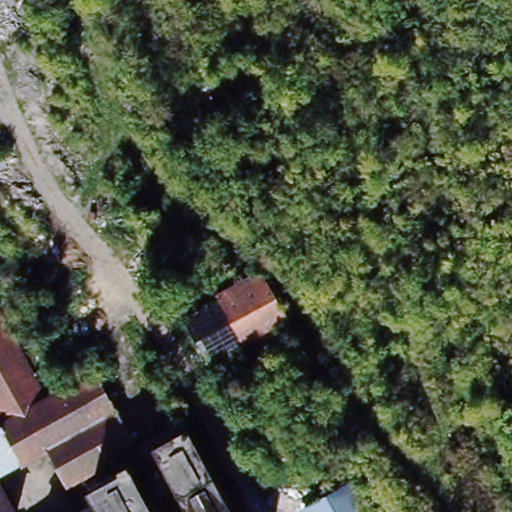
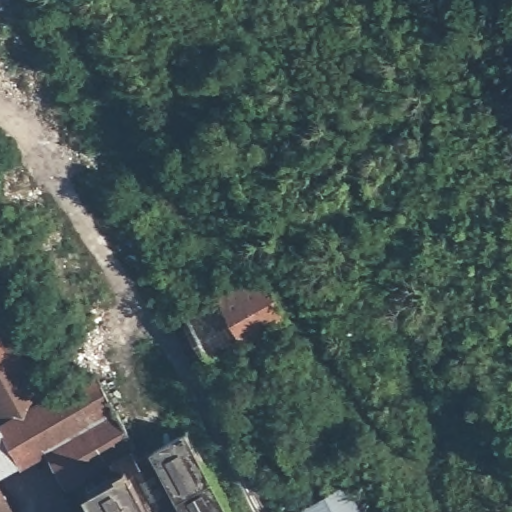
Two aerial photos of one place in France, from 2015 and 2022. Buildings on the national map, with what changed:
unchanged [(181,316),(255,277),(279,323),(206,363),(181,316)]
unchanged [(40,343),(66,390),(91,377),(137,458),(181,435),(127,470),(83,492),(94,512),(76,512),(83,508),(69,485),(63,488),(43,452),(19,465),(0,430),(0,321),(19,354),(40,343)]
unchanged [(19,465),(0,476),(0,430),(19,465)]
unchanged [(224,512),(94,512),(83,492),(127,470),(181,435),(224,512)]
unchanged [(267,481),(290,468),(302,488),(278,501),(267,481)]
unchanged [(363,512),(305,512),(303,508),(348,484),(363,512)]
unchanged [(9,512),(0,512),(0,495),(9,512)]

